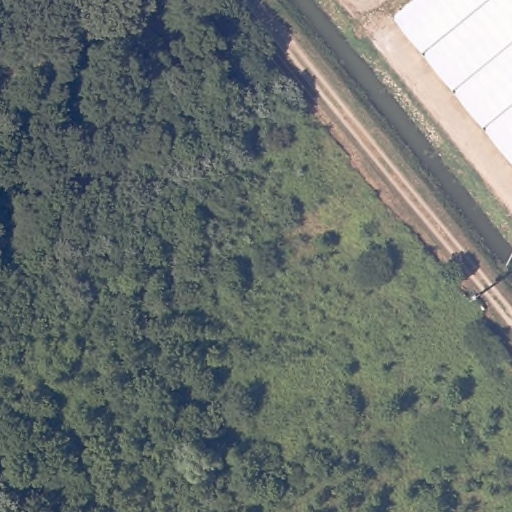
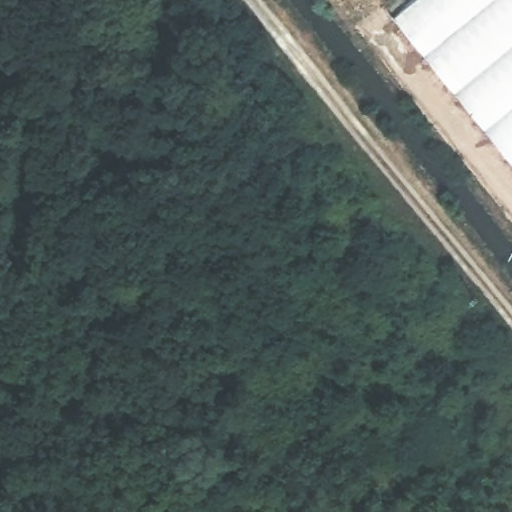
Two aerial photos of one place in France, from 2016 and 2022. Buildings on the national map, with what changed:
unchanged [(395,19),(417,0),(512,0),(512,163),(395,19)]

